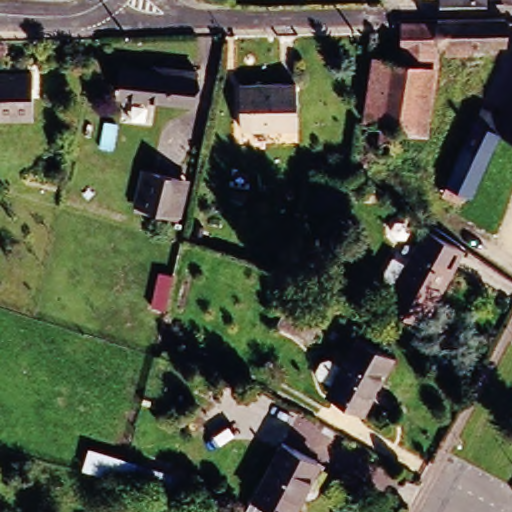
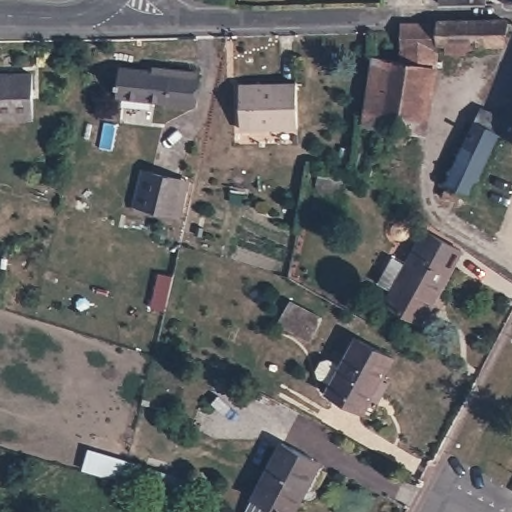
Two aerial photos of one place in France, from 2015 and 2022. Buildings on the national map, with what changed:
unchanged [(441,0),(484,0),(483,12),(440,11),(441,0)]
unchanged [(497,7),(497,0),(512,0),(512,8),(497,7)]
unchanged [(445,22),(441,49),(439,66),(430,65),(409,62),(402,61),(407,22),(445,22)]
unchanged [(490,54),(441,49),(445,22),(492,22),(490,54)]
unchanged [(377,58),(402,61),(409,62),(400,131),(395,157),(363,154),(377,58)]
unchanged [(430,65),(421,134),(400,131),(409,62),(430,65)]
unchanged [(197,110),(120,105),(122,96),(115,95),(116,79),(124,80),(124,70),(167,74),(168,67),(202,69),(197,110)]
unchanged [(0,121),(0,79),(33,80),(33,122),(0,121)]
unchanged [(302,82),(303,123),(242,127),(241,85),(302,82)]
unchanged [(498,134),(512,95),(512,139),(498,134)]
unchanged [(475,198),(468,197),(465,208),(447,202),(474,124),(498,134),(475,198)]
unchanged [(172,190),(163,217),(138,208),(148,181),(172,190)]
unchanged [(350,193),(334,226),(307,213),(322,181),(350,193)]
unchanged [(460,252),(436,294),(430,292),(413,321),(385,303),(425,232),(460,252)]
unchanged [(177,271),(168,307),(152,302),(162,266),(177,271)]
unchanged [(327,319),(317,340),(282,322),(293,301),(327,319)]
unchanged [(393,360),(363,412),(328,392),(333,383),(322,377),(321,371),(325,362),(332,361),(343,367),(359,340),(393,360)]
unchanged [(245,490),(280,438),(315,461),(284,512),(280,512),(270,506),(266,512),(255,512),(238,502),(245,490)]
unchanged [(85,472),(90,451),(131,462),(212,486),(206,508),(126,484),(85,472)]
unchanged [(204,512),(206,508),(212,512),(204,512)]

